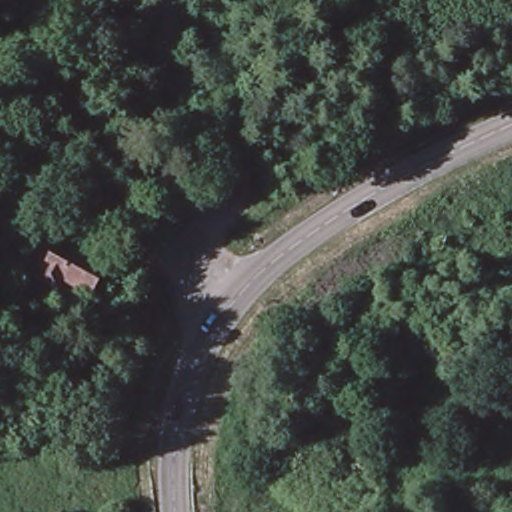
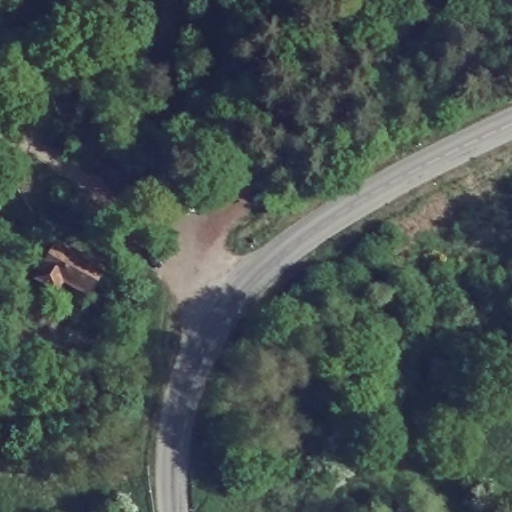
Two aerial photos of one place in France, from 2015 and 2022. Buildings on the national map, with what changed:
unchanged [(116,269),(96,303),(60,279),(55,290),(35,279),(61,232),(116,269)]

